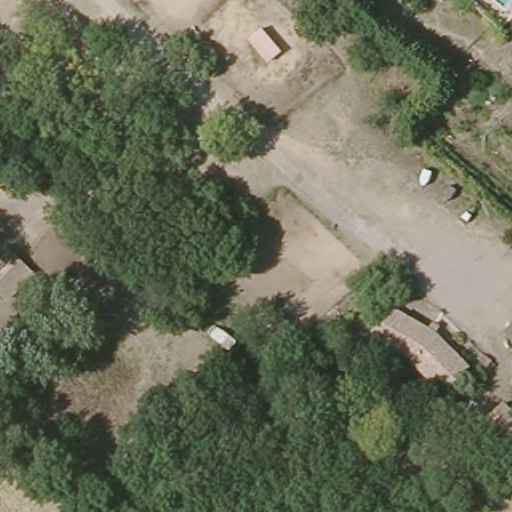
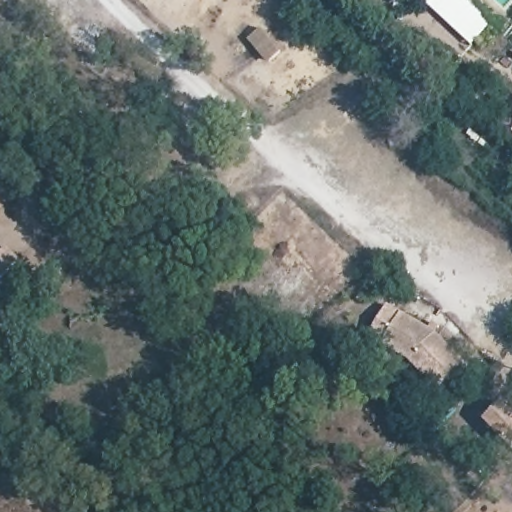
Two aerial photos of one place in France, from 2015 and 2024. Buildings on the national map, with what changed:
new [(472,46),(423,0),(469,0),(493,23),(472,46)]
unchanged [(8,238),(38,269),(10,297),(0,288),(0,246),(8,238)]
unchanged [(435,323),(469,357),(443,383),(410,349),(369,326),(387,295),(435,323)]
unchanged [(503,398),(512,406),(512,442),(485,416),(503,398)]

